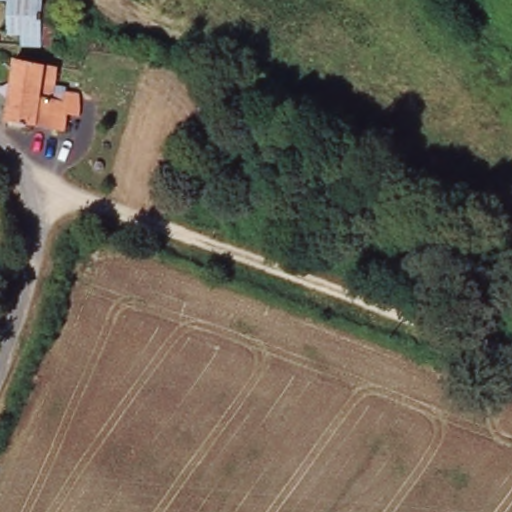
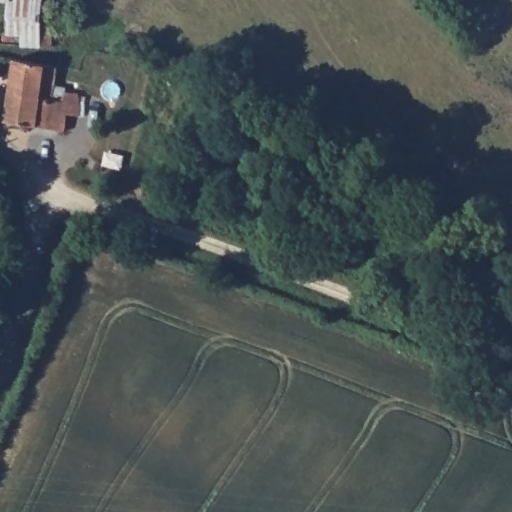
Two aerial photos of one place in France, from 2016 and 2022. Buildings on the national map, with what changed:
unchanged [(43,4),(53,5),(58,8),(59,15),(57,20),(51,23),(49,42),(18,38),(19,32),(9,30),(10,0),(44,0),(43,4)]
unchanged [(17,59),(53,66),(61,67),(59,87),(81,92),(77,115),(68,114),(69,104),(12,90),(17,59)]
unchanged [(12,90),(69,104),(68,114),(65,130),(8,117),(12,90)]

